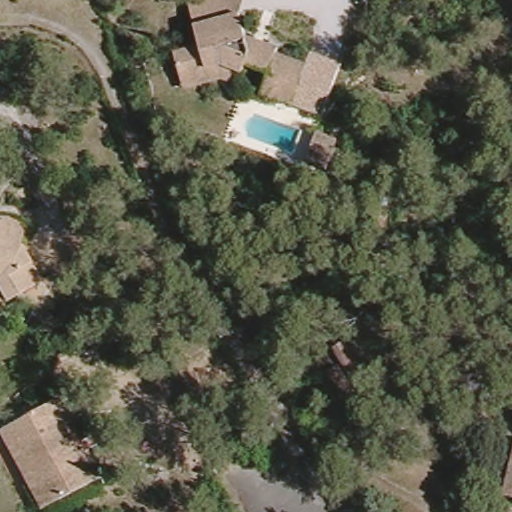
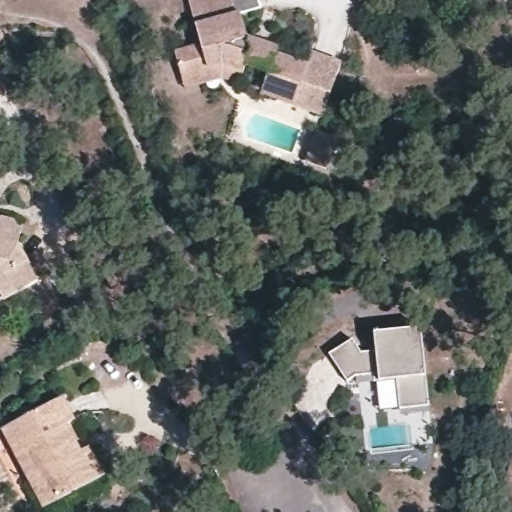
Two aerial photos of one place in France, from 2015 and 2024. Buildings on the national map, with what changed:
unchanged [(180,84),(178,77),(170,49),(196,43),(185,0),(239,0),(234,13),(240,36),(271,45),(270,53),(300,63),(287,102),(256,91),(262,71),(239,65),(234,75),(232,83),(212,76),(180,84)]
unchanged [(303,54),(338,64),(325,113),(287,102),(300,63),(303,54)]
unchanged [(15,303),(2,283),(0,282),(0,227),(10,220),(25,224),(31,232),(27,248),(48,282),(15,303)]
new [(353,339),(361,354),(375,351),(373,333),(420,329),(430,414),(399,416),(396,381),(348,384),(328,353),(353,339)]
unchanged [(63,394),(75,417),(63,423),(78,451),(90,445),(102,472),(45,501),(4,425),(63,394)]

